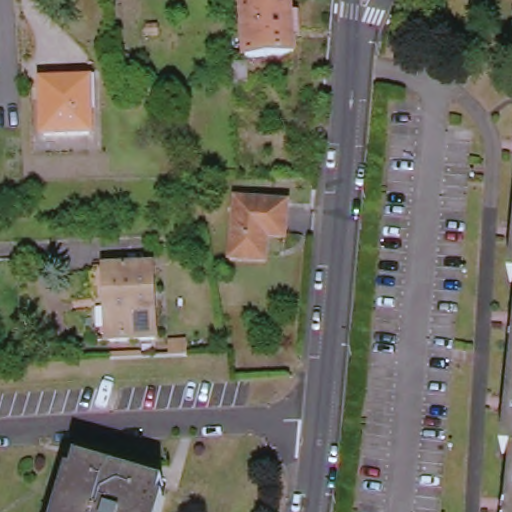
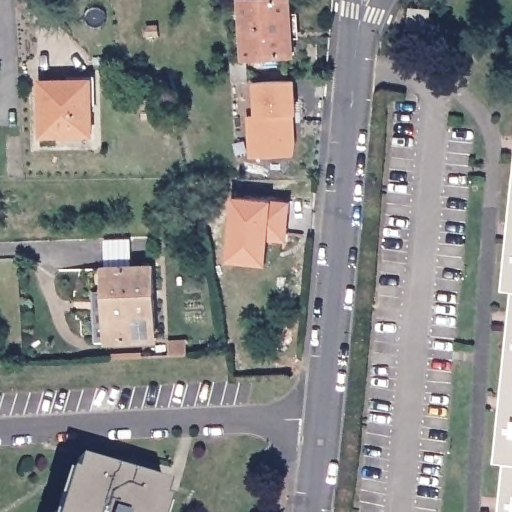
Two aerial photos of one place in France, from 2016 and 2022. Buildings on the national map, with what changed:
unchanged [(242,0),(292,0),(293,17),(297,17),(298,37),(295,37),(295,54),(291,54),(246,57),(242,0)]
unchanged [(407,28),(410,7),(429,8),(427,30),(407,28)]
unchanged [(41,135),(41,81),(66,80),(66,75),(94,74),(94,109),(89,109),(89,134),(41,135)]
new [(255,115),(252,82),(292,80),(294,113),(289,114),(290,122),(293,122),(295,141),(291,141),(292,154),(250,157),(247,116),(255,115)]
unchanged [(229,259),(235,200),(286,206),(282,240),(267,238),(264,263),(229,259)]
unchanged [(100,270),(160,267),(163,341),(102,344),(100,270)]
unchanged [(512,422),(512,454),(508,454),(512,422)]
unchanged [(77,461),(163,488),(160,502),(157,512),(61,512),(73,475),(77,461)]

